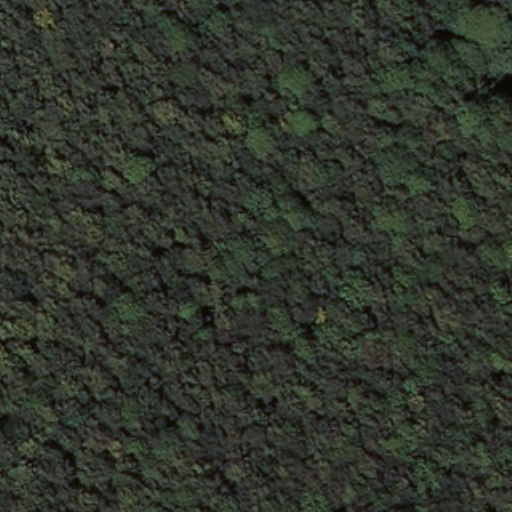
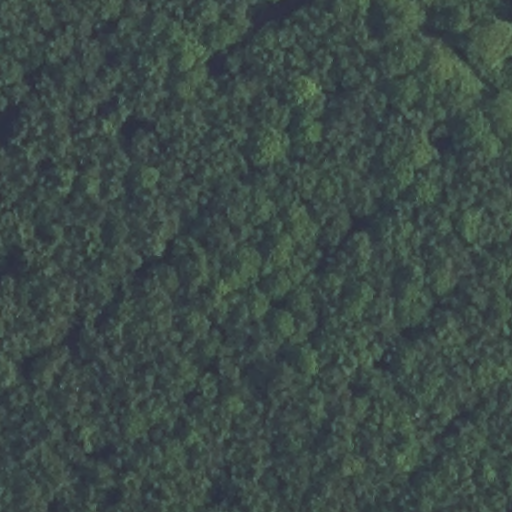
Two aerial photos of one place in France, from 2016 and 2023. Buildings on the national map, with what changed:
[]

